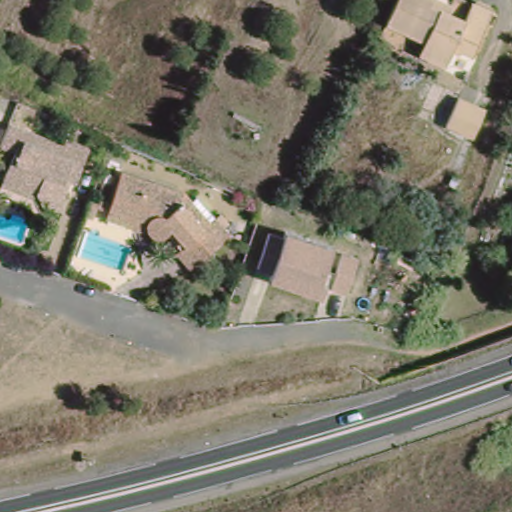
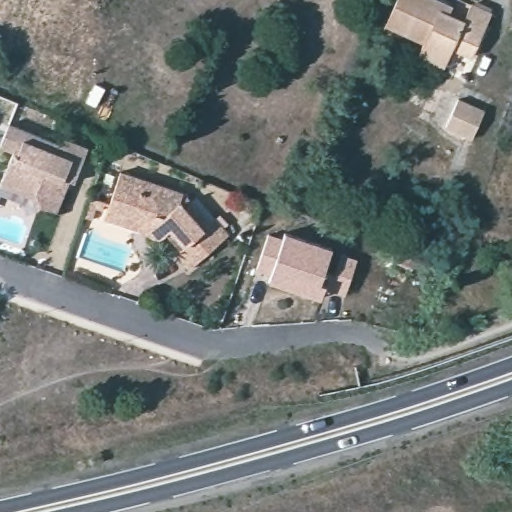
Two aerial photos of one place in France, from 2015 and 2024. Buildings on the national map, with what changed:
unchanged [(493,14),(474,56),(455,47),(447,65),(421,54),(426,42),(388,24),(399,0),(437,0),(444,3),(453,7),(451,15),(465,21),(473,5),(493,14)]
unchanged [(457,99),(483,109),(470,140),(444,129),(457,99)]
unchanged [(63,140),(65,133),(88,142),(75,176),(70,174),(56,207),(43,201),(33,191),(1,178),(14,145),(0,140),(9,117),(63,140)]
unchanged [(164,232),(160,232),(155,232),(150,229),(108,215),(111,202),(122,167),(186,187),(213,218),(216,216),(228,230),(192,262),(179,249),(181,245),(168,231),(164,232)]
unchanged [(284,231),(330,247),(323,269),(334,273),(341,254),(355,257),(344,296),(328,292),(317,284),(314,296),(265,282),(284,231)]

